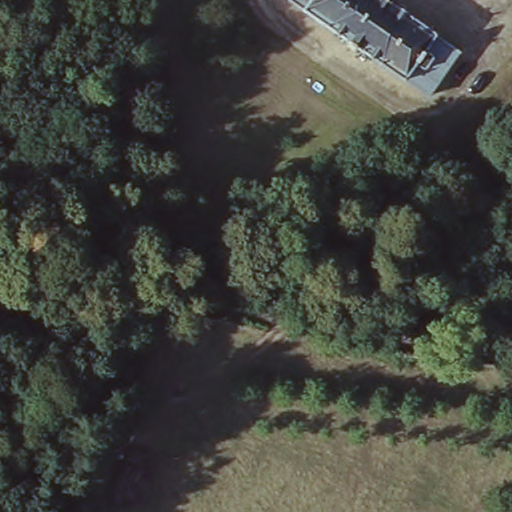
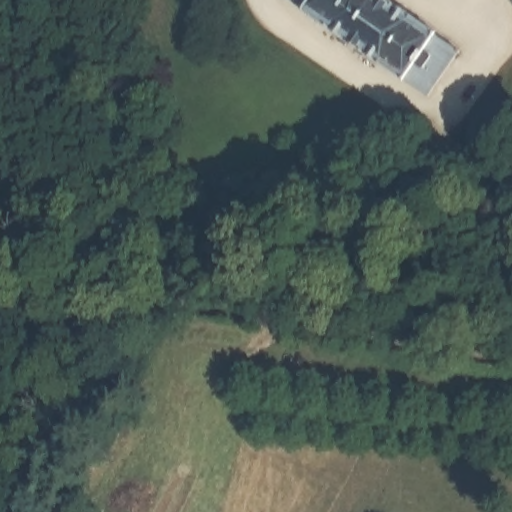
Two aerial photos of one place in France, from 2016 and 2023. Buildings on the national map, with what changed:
unchanged [(434,30),(431,34),(457,51),(425,99),(282,0),(392,0),(434,30)]

